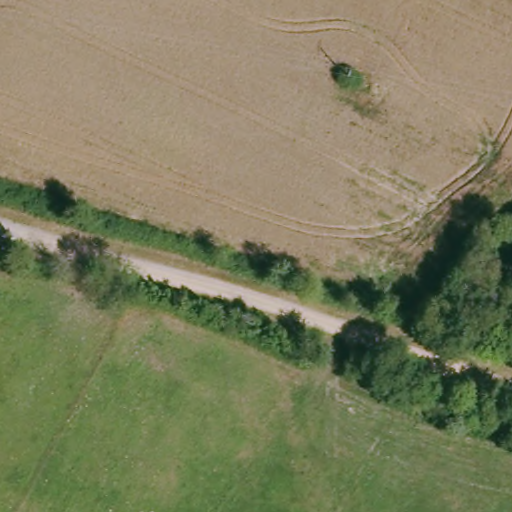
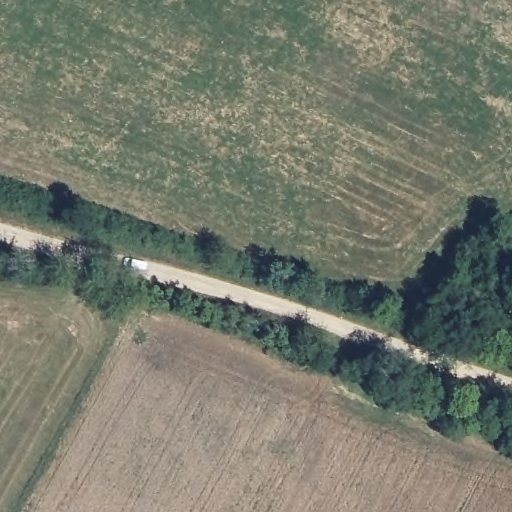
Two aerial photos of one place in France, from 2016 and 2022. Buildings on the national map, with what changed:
[]

